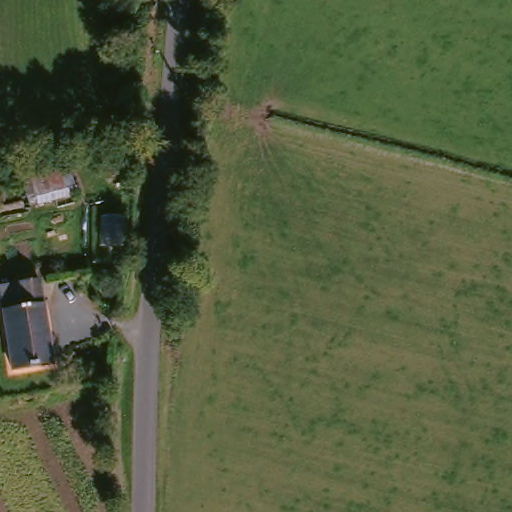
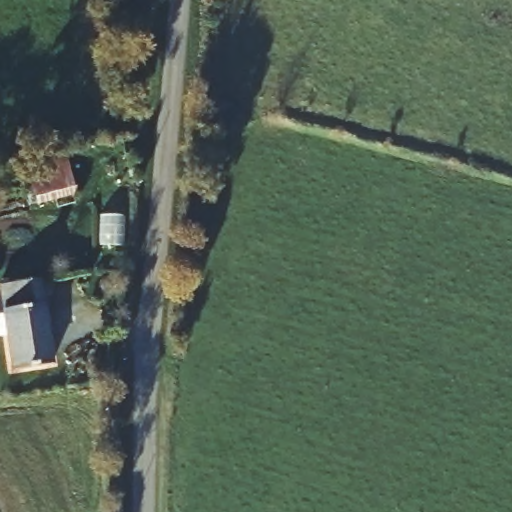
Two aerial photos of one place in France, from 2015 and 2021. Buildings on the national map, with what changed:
unchanged [(73,210),(33,215),(29,175),(67,169),(73,210)]
unchanged [(39,282),(52,369),(12,373),(0,294),(0,287),(39,282)]

